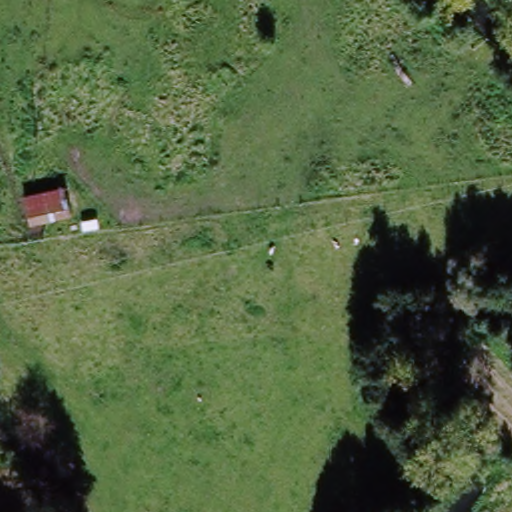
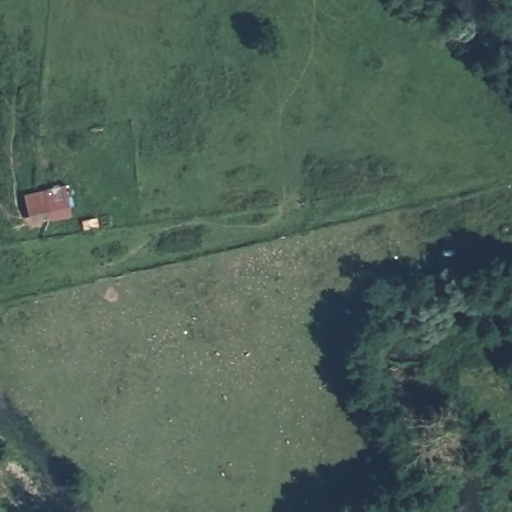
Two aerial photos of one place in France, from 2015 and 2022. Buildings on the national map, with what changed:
unchanged [(24,199),(65,188),(74,216),(31,227),(24,199)]

